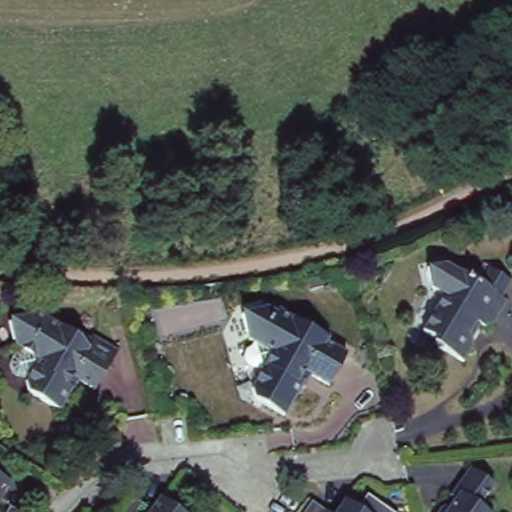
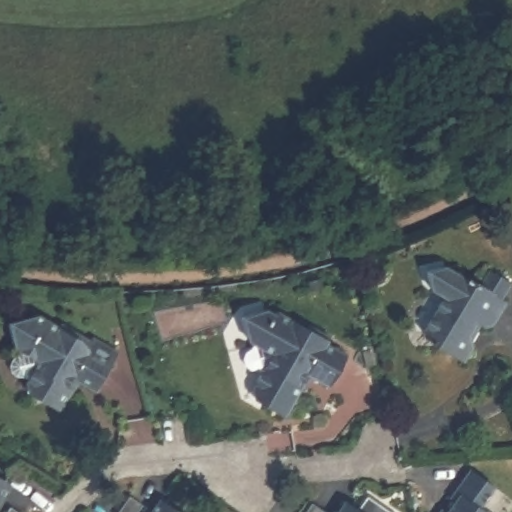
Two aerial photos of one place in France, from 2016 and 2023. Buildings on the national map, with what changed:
unchanged [(438,292),(426,285),(423,267),(440,262),(501,298),(488,320),(479,322),(472,317),(464,331),(468,343),(459,357),(429,338),(431,335),(417,327),(438,292)]
unchanged [(257,370),(251,370),(245,365),(243,358),(245,353),(251,349),(254,344),(248,341),(241,317),(265,311),(275,317),(277,313),(306,330),(308,326),(329,338),(327,342),(325,345),(346,356),(328,387),(308,375),(284,417),(254,398),(251,390),(262,372),(257,370)]
unchanged [(89,392),(71,381),(55,410),(25,392),(23,384),(25,380),(20,377),(14,376),(9,372),(7,366),(8,360),(14,356),(17,352),(11,347),(5,323),(40,314),(85,342),(87,339),(110,352),(89,392)]
unchanged [(446,507),(455,495),(450,492),(454,487),(470,465),(493,482),(478,502),(492,512),(436,512),(441,504),(446,507)]
unchanged [(5,476),(2,481),(7,484),(0,497),(0,473),(5,476)]
unchanged [(129,495),(143,505),(137,512),(117,512),(129,495)]
unchanged [(306,497),(329,512),(336,501),(341,504),(344,499),(364,512),(296,512),(306,497)]
unchanged [(9,502),(24,510),(23,512),(3,512),(9,502)]
unchanged [(156,504),(161,507),(165,502),(179,512),(150,512),(156,504)]

